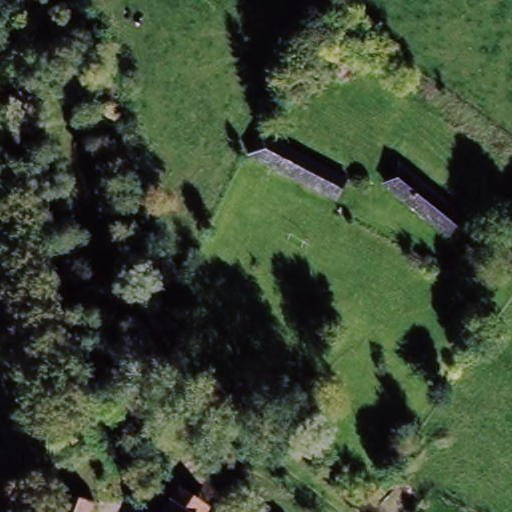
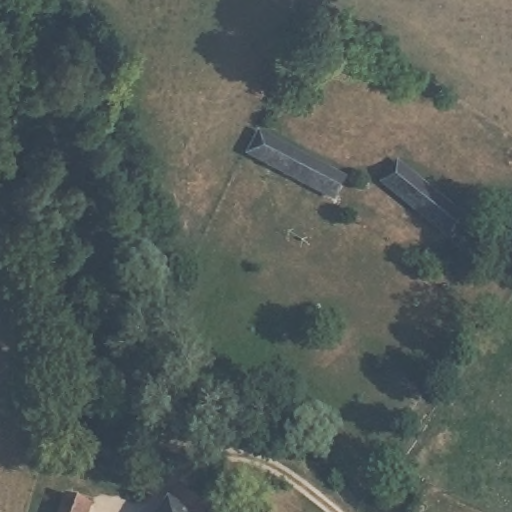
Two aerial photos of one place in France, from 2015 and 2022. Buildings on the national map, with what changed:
unchanged [(342,207),(245,158),(255,135),(352,185),(342,207)]
unchanged [(447,242),(385,190),(403,169),(463,221),(447,242)]
unchanged [(66,506),(88,512),(64,512),(66,506)]

